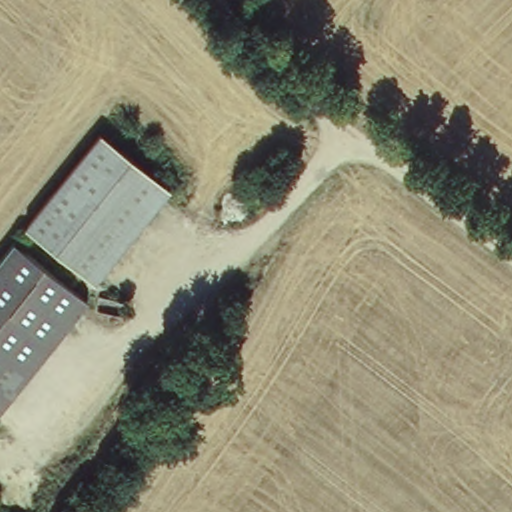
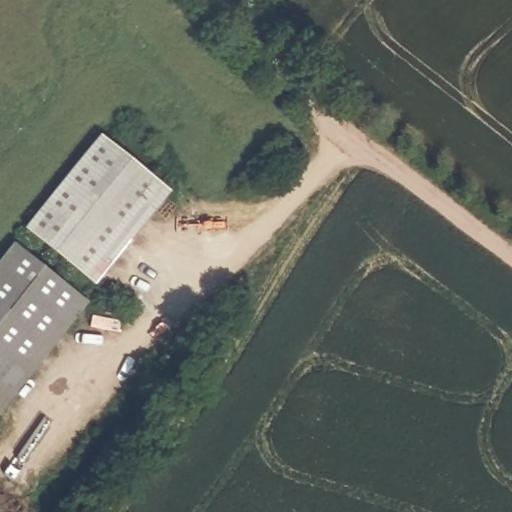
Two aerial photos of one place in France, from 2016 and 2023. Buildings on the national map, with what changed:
unchanged [(28,222),(106,125),(177,185),(101,281),(28,222)]
unchanged [(11,239),(87,299),(0,414),(0,254),(11,239)]

